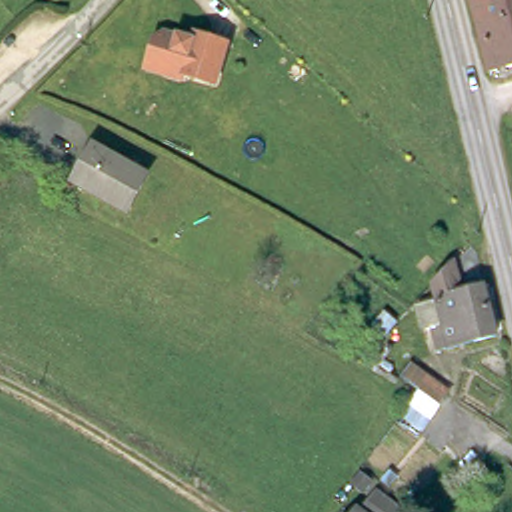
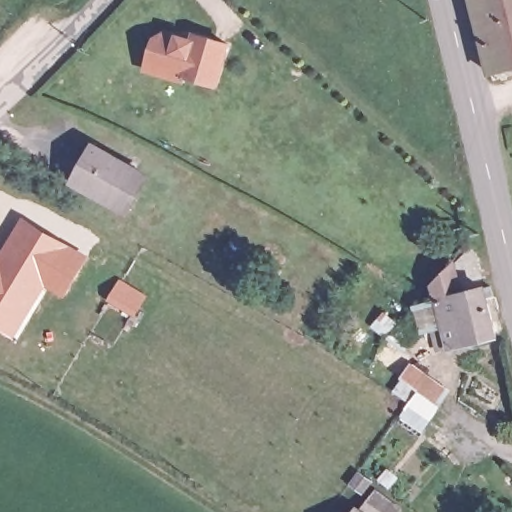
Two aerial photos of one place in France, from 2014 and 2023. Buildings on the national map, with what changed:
unchanged [(489,70),(470,0),(512,0),(512,63),(489,70)]
unchanged [(227,40),(214,85),(145,66),(155,30),(172,34),(174,31),(192,35),(193,30),(227,40)]
unchanged [(75,179),(92,144),(147,172),(129,208),(75,179)]
new [(0,252),(1,253),(24,215),(65,240),(33,290),(41,295),(15,337),(0,328),(0,252)]
unchanged [(437,326),(449,323),(440,284),(461,265),(469,296),(489,291),(500,337),(442,350),(437,326)]
unchanged [(377,327),(385,317),(395,326),(385,336),(377,327)]
unchanged [(402,421),(419,398),(420,396),(404,383),(411,373),(449,401),(441,411),(422,436),(402,421)]
unchanged [(360,509),(364,512),(357,512),(360,509)]

